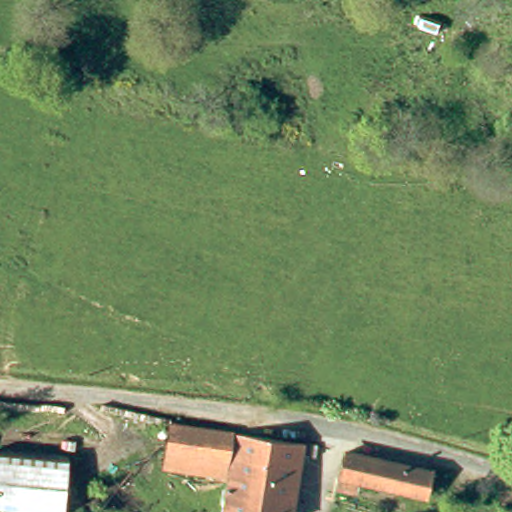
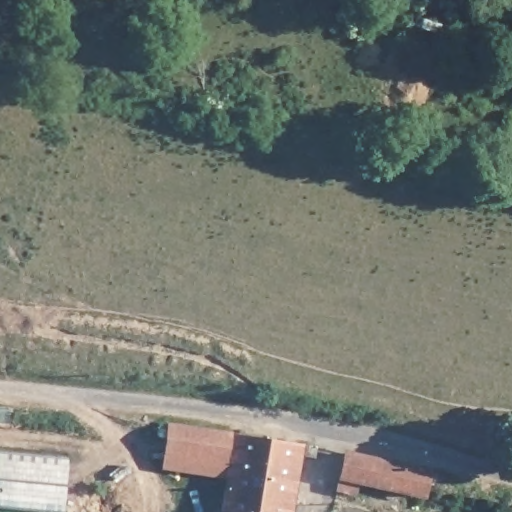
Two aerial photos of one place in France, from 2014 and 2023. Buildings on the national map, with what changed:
unchanged [(167,471),(171,431),(237,439),(232,479),(167,471)]
unchanged [(306,447),(298,512),(228,512),(232,479),(237,439),(306,447)]
unchanged [(66,512),(0,512),(0,451),(71,458),(66,512)]
unchanged [(342,490),(344,481),(349,455),(432,471),(428,497),(359,484),(357,492),(342,490)]

